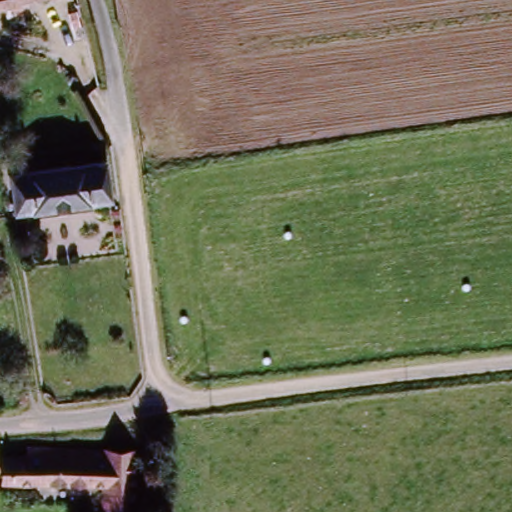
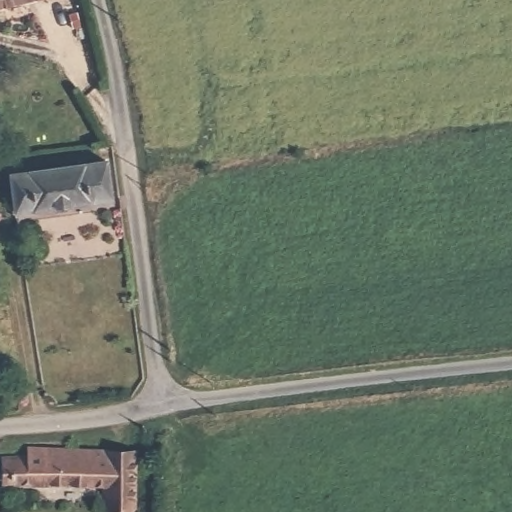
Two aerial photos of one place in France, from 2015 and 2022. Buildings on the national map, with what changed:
unchanged [(0,9),(0,0),(49,0),(27,3),(0,9)]
unchanged [(70,166),(91,164),(92,169),(98,169),(101,188),(93,189),(95,200),(82,201),(13,211),(8,174),(70,166)]
unchanged [(106,485),(6,492),(0,492),(0,475),(8,475),(24,475),(24,464),(133,458),(133,484),(133,505),(105,506),(106,485)]

